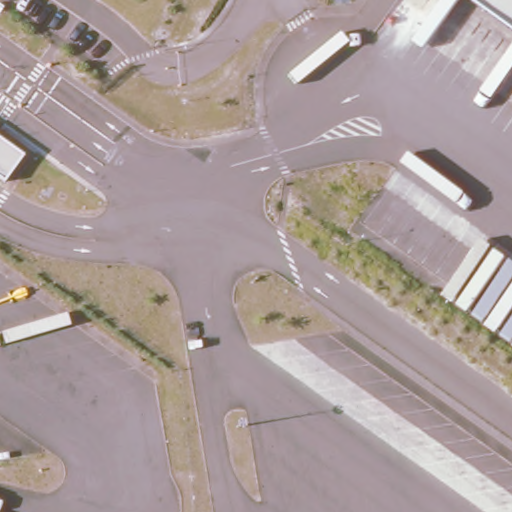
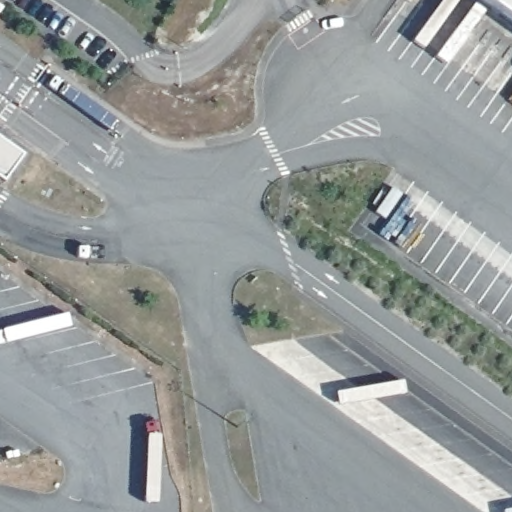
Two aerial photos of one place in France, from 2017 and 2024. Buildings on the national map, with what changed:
unchanged [(512,31),(469,0),(512,0),(512,31)]
unchanged [(25,157),(4,187),(0,184),(0,138),(25,157)]

